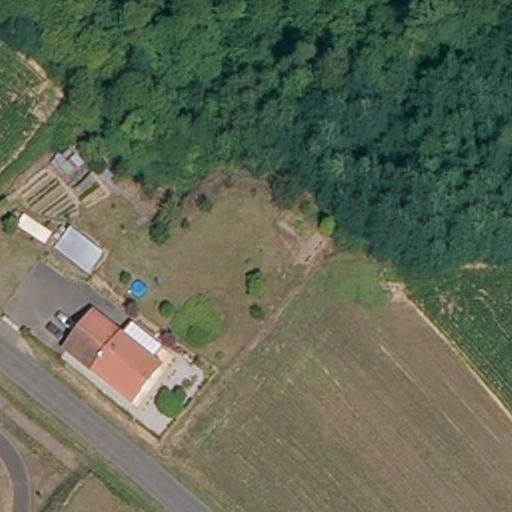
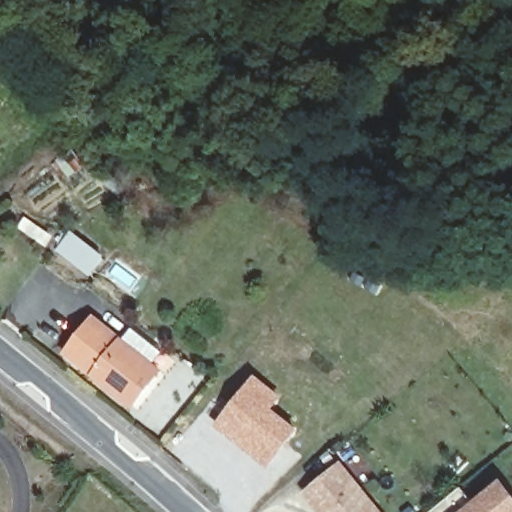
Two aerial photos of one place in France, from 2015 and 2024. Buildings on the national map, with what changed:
unchanged [(102,257),(86,277),(65,260),(55,253),(56,252),(71,233),(102,257)]
unchanged [(91,319),(113,337),(119,343),(130,330),(159,355),(149,368),(156,375),(129,410),(63,354),(91,319)]
new [(282,396),(273,408),(298,428),(267,469),(213,426),(255,375),(282,396)]
new [(339,460),(382,512),(322,512),(303,489),(339,460)]
new [(512,494),(512,512),(461,512),(501,480),(512,494)]

